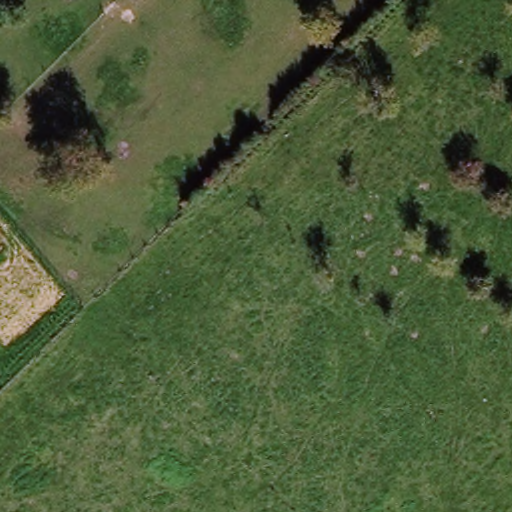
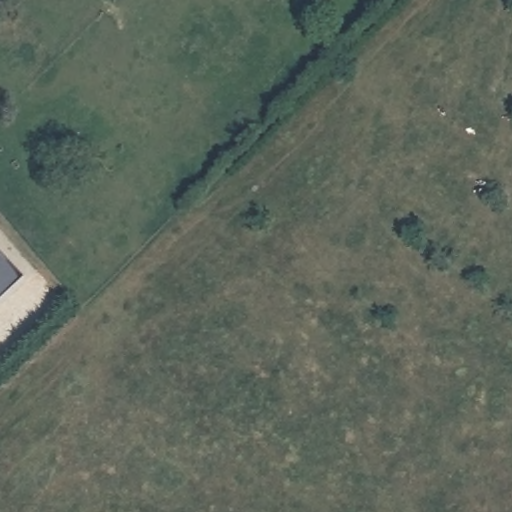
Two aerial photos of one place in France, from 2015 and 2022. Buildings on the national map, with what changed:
new [(26,281),(0,305),(0,253),(26,281)]

